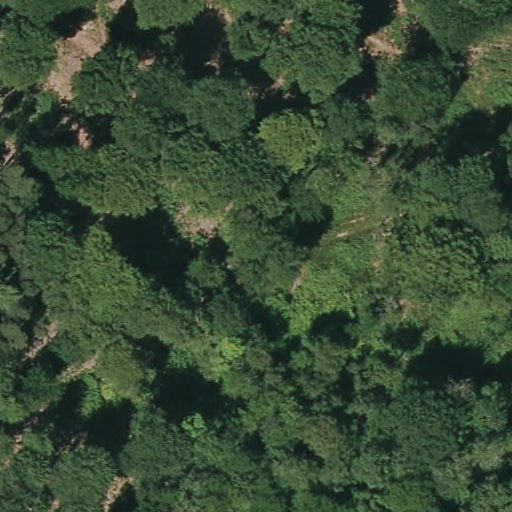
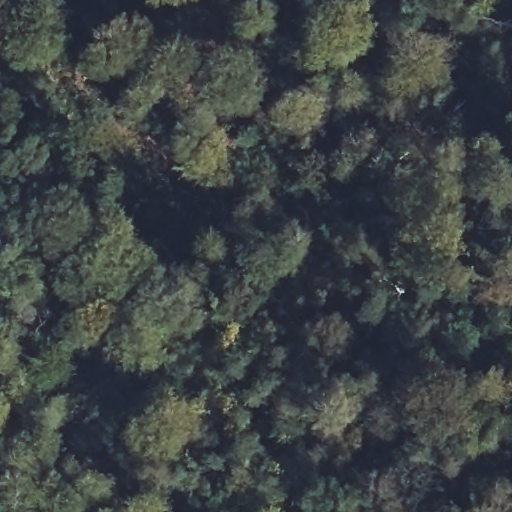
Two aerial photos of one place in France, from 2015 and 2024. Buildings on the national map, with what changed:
[]

